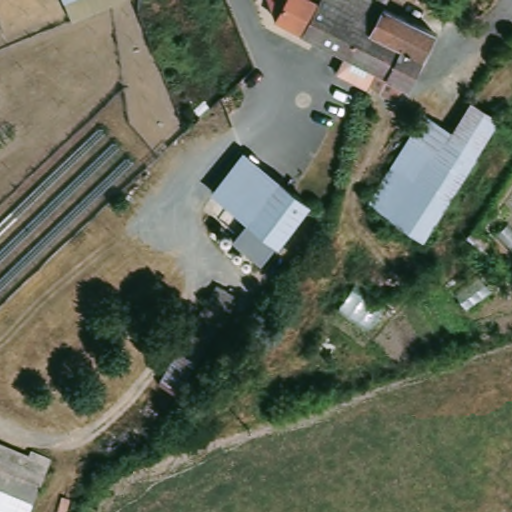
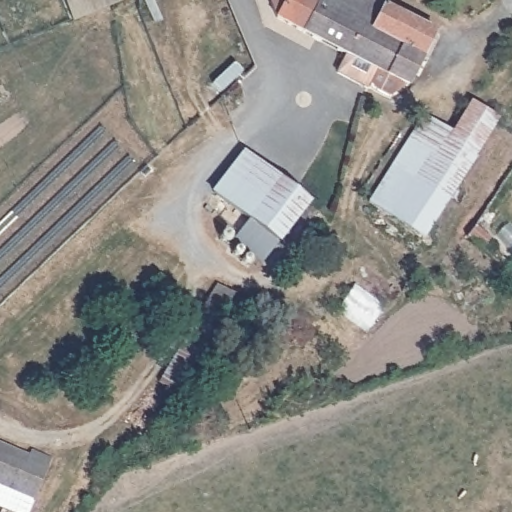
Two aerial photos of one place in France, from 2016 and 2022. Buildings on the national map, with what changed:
unchanged [(52,0),(68,0),(54,6),(52,0)]
unchanged [(351,19),(337,47),(312,35),(296,27),(269,15),(264,0),(312,0),(355,0),(360,2),(356,10),(351,19)]
unchanged [(356,10),(360,2),(355,0),(378,0),(426,27),(402,80),(382,89),(369,80),(363,76),(384,35),(351,19),(356,10)]
unchanged [(351,19),(384,35),(368,64),(363,76),(360,80),(328,65),(337,47),(351,19)]
unchanged [(501,120),(478,155),(477,158),(424,241),(373,204),(431,115),(456,131),(475,99),(479,102),(487,107),(495,113),(502,119),(501,120)]
unchanged [(250,222),(210,194),(244,151),(316,202),(282,245),(263,267),(233,242),(250,222)]
unchanged [(218,285),(236,295),(180,393),(162,383),(218,285)]
unchanged [(51,455),(29,512),(15,512),(0,506),(0,442),(28,453),(30,446),(51,455)]

